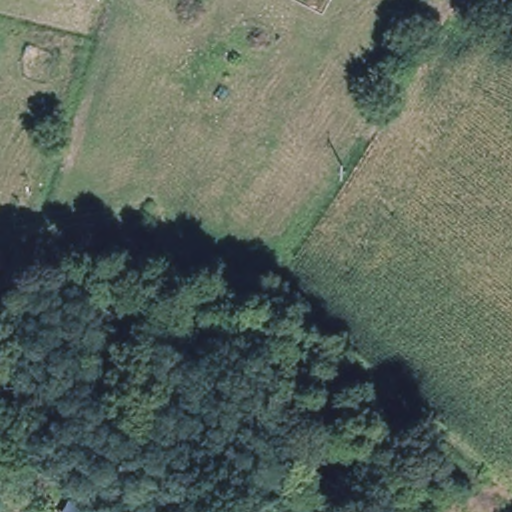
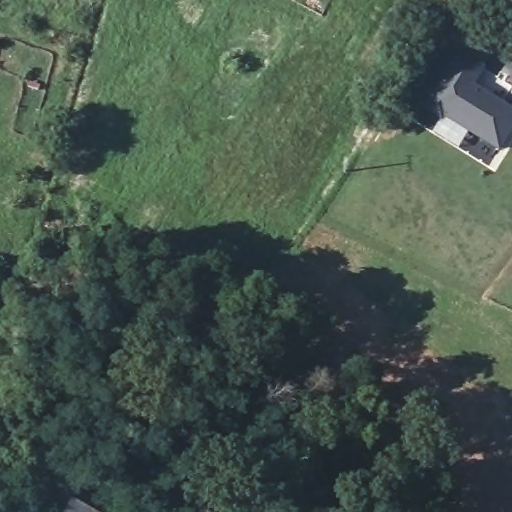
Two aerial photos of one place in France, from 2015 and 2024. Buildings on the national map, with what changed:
new [(443,118),(441,122),(423,110),(461,51),(488,69),(475,90),(512,109),(512,133),(499,152),(443,118)]

